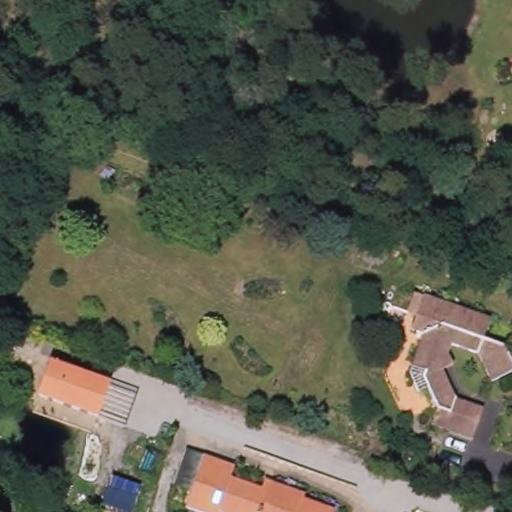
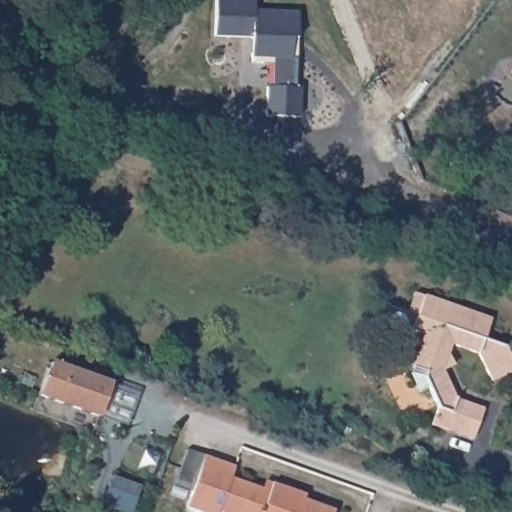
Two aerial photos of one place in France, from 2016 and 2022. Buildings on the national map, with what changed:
new [(256,56),(256,37),(219,37),(219,0),(257,0),(257,9),(301,10),(301,36),(302,56),(301,85),(306,85),(306,115),(273,115),(273,85),(278,85),(278,62),(257,61),(257,56),(256,56)]
unchanged [(502,348),(512,372),(512,373),(489,384),(476,355),(449,345),(441,371),(455,401),(481,412),(471,440),(430,425),(437,406),(428,388),(417,393),(407,374),(421,335),(410,331),(418,310),(408,306),(412,291),(423,295),(488,319),(481,340),(502,348)]
unchanged [(51,361),(110,384),(137,395),(126,427),(98,417),(37,397),(51,361)]
unchanged [(262,493),(265,483),(272,486),(304,497),(302,504),(323,512),(185,512),(191,493),(174,487),(185,453),(204,459),(235,470),(231,482),(262,493)]
new [(141,486),(131,512),(122,512),(101,504),(111,476),(141,486)]

